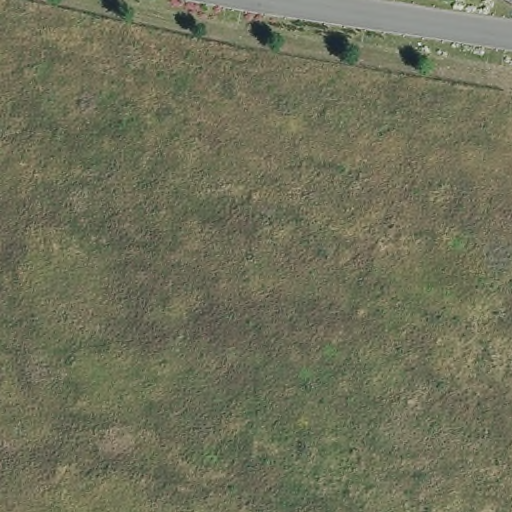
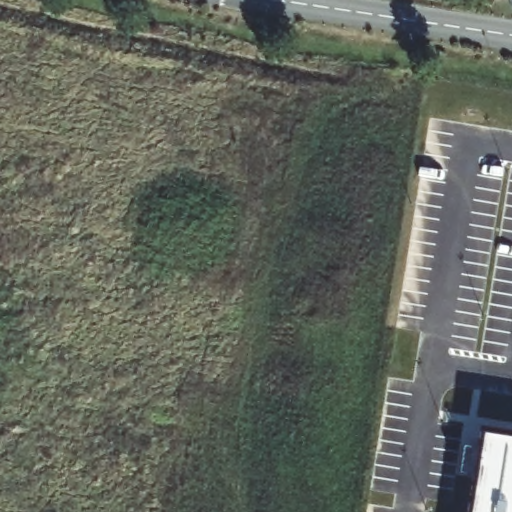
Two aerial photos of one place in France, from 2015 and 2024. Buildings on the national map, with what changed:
new [(482,433),(512,437),(512,512),(469,512),(482,433)]

